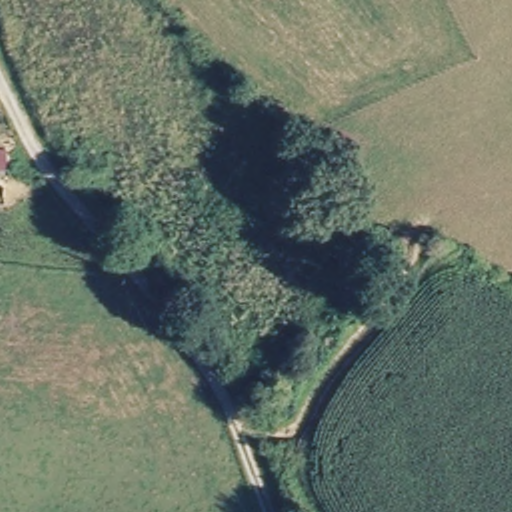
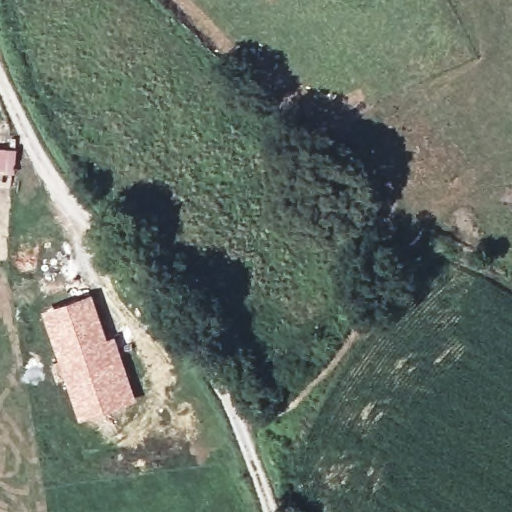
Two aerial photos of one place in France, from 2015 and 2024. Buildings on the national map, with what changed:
new [(93,293),(109,337),(115,335),(137,399),(79,419),(42,311),(93,293)]

